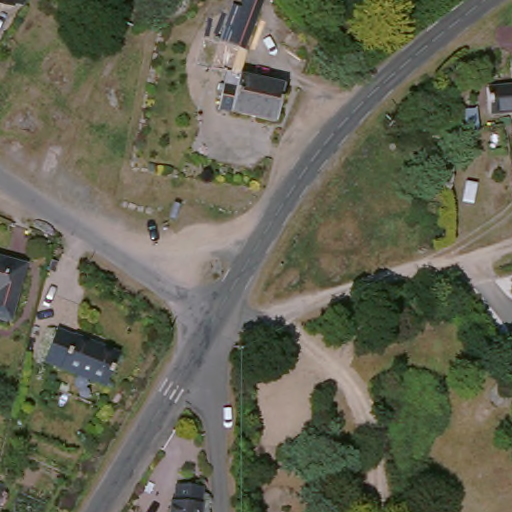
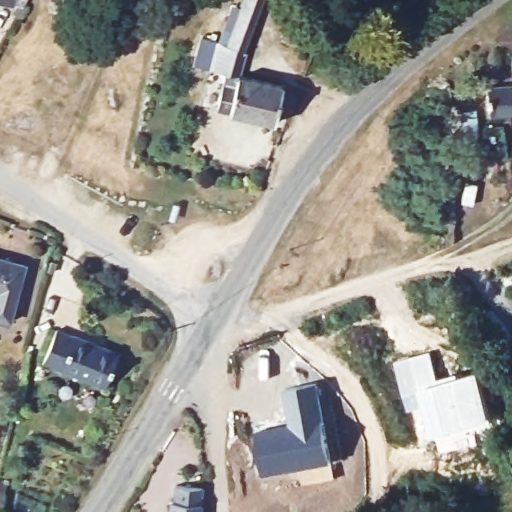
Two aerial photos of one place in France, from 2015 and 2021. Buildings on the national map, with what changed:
unchanged [(234,47),(250,3),(245,1),(244,0),(267,0),(247,53),(234,47)]
unchanged [(247,53),(249,54),(243,76),(287,86),(280,124),(223,110),(231,74),(224,72),(214,70),(221,44),(231,46),(234,47),(247,53)]
unchanged [(494,122),(494,121),(491,93),(499,92),(512,91),(512,120),(506,121),(494,122)]
unchanged [(25,267),(10,321),(0,318),(0,259),(25,267)]
unchanged [(119,354),(107,387),(44,365),(56,333),(74,339),(74,338),(119,354)]
new [(436,384),(456,378),(458,382),(477,377),(489,420),(434,436),(425,407),(408,412),(395,366),(428,356),(436,384)]
new [(307,427),(304,413),(299,413),(293,382),(314,378),(332,465),(299,472),(298,469),(263,477),(255,438),(307,427)]
unchanged [(201,489),(200,512),(171,512),(171,501),(174,501),(174,500),(174,488),(201,489)]

